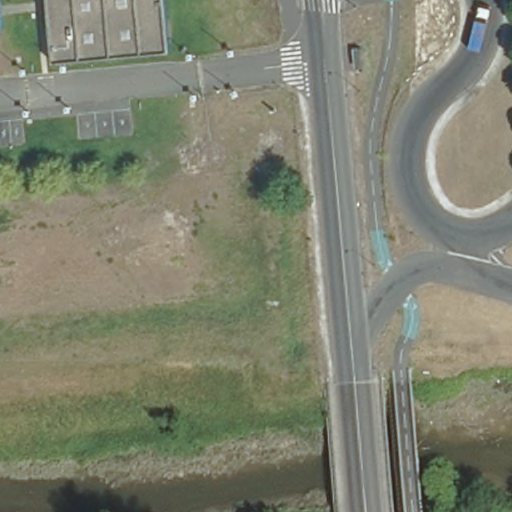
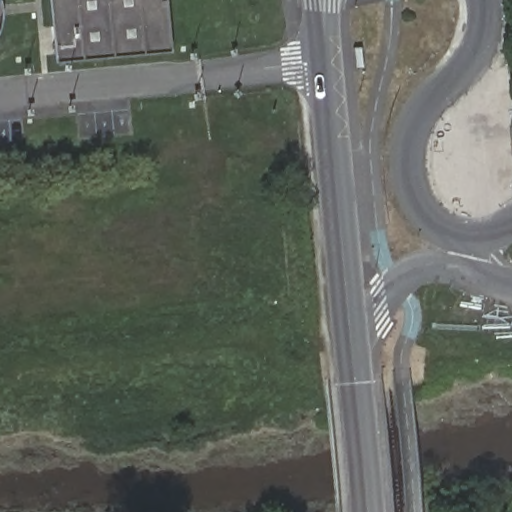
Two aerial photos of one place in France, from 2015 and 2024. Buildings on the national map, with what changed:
unchanged [(168,50),(54,62),(48,0),(164,0),(168,50)]

